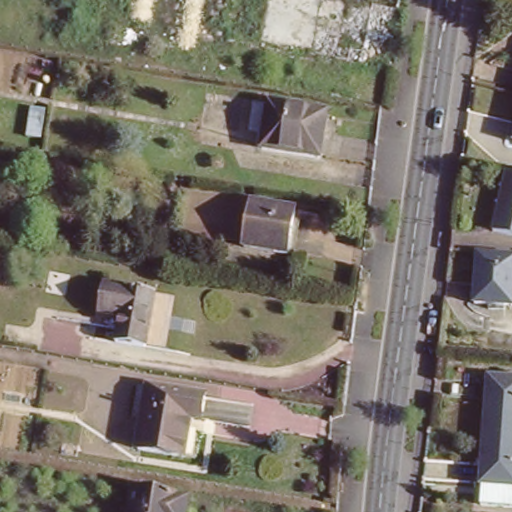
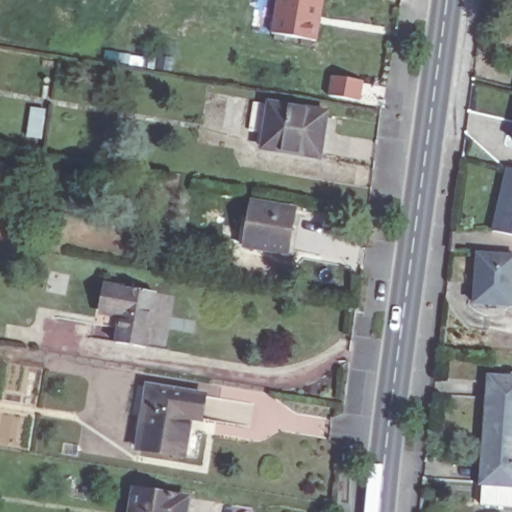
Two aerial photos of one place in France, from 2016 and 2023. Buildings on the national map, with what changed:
new [(325,0),(317,41),(271,33),(278,0),(325,0)]
unchanged [(328,110),(322,153),(265,143),(271,101),(328,110)]
unchanged [(512,167),(512,238),(493,233),(506,166),(512,167)]
unchanged [(294,207),(286,255),(240,247),(247,200),(294,207)]
unchanged [(512,256),(512,306),(473,299),(480,250),(512,256)]
unchanged [(161,293),(152,347),(122,341),(126,315),(106,311),(111,283),(161,293)]
unchanged [(512,376),(512,433),(485,430),(492,373),(512,376)]
unchanged [(203,397),(200,419),(187,417),(180,456),(137,448),(147,387),(203,397)]
unchanged [(512,433),(512,510),(474,505),(485,430),(512,433)]
unchanged [(189,495),(186,512),(128,512),(134,484),(189,495)]

